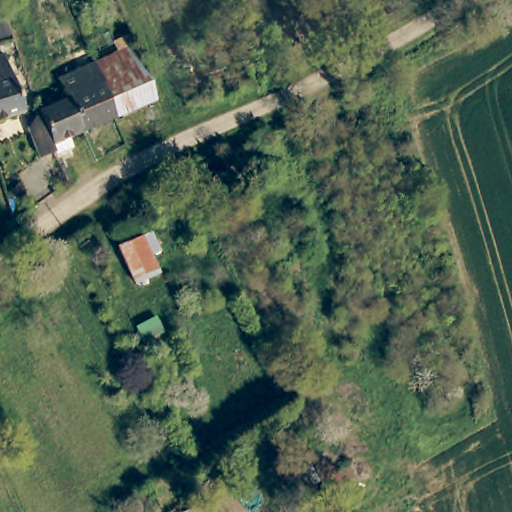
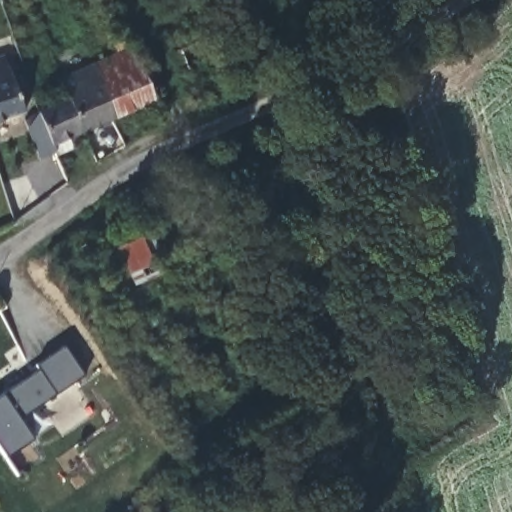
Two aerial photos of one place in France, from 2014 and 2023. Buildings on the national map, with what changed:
unchanged [(134,51),(157,103),(115,121),(101,88),(104,86),(96,67),(134,51)]
unchanged [(5,60),(25,116),(0,125),(0,62),(5,60)]
unchanged [(115,121),(85,134),(69,102),(60,82),(96,67),(104,86),(101,88),(115,121)]
unchanged [(46,169),(39,153),(30,132),(43,126),(38,115),(69,102),(85,134),(54,147),(61,163),(46,169)]
unchanged [(153,233),(161,253),(151,257),(159,276),(136,288),(118,249),(153,233)]
new [(20,419),(34,439),(7,458),(0,449),(0,397),(4,394),(40,369),(37,365),(65,346),(85,374),(20,419)]
new [(137,495),(146,512),(127,512),(122,504),(137,495)]
new [(187,512),(185,512),(187,511),(187,512)]

